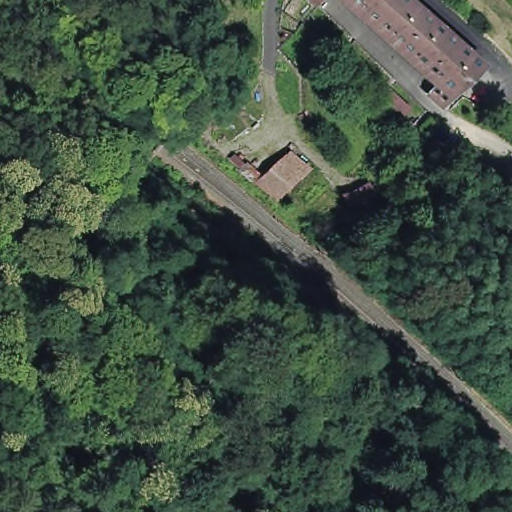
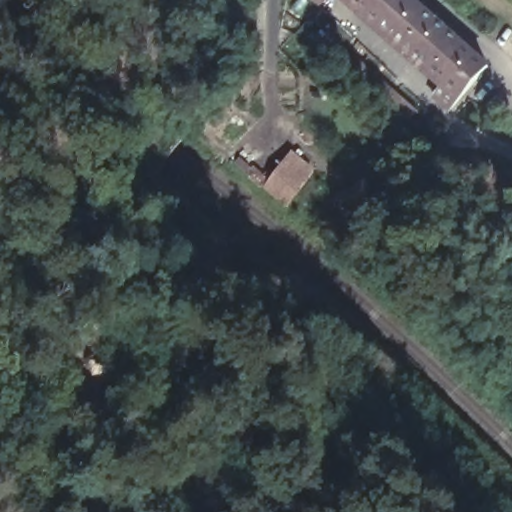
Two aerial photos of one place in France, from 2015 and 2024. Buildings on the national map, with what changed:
unchanged [(460,91),(357,0),(419,0),(487,61),(460,91)]
unchanged [(435,141),(457,162),(440,180),(418,159),(435,141)]
unchanged [(312,167),(283,204),(258,184),(288,149),(312,167)]

